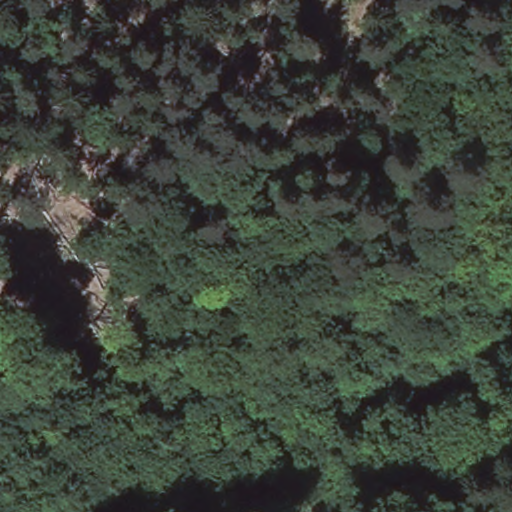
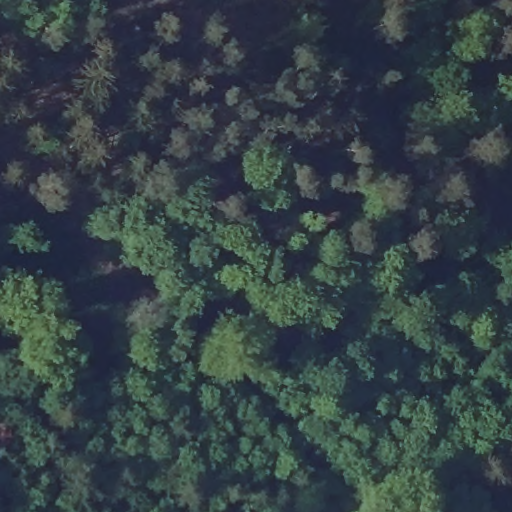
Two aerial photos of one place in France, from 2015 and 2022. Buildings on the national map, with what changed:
[]

